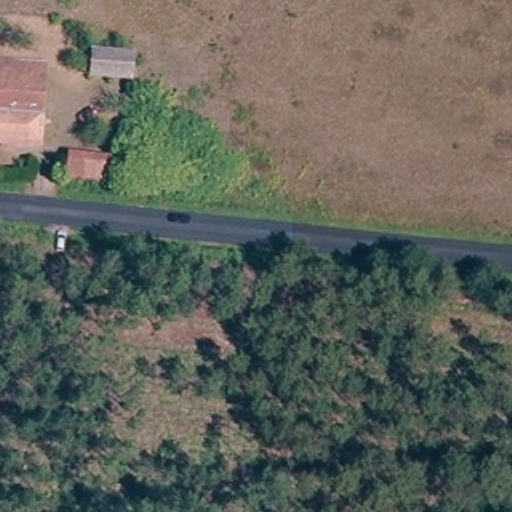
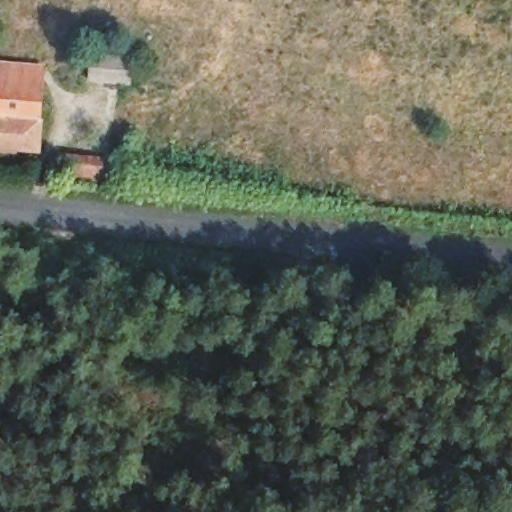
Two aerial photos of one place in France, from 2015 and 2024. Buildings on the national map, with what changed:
unchanged [(134,56),(132,91),(86,88),(91,52),(134,56)]
unchanged [(0,97),(0,68),(50,71),(51,100),(0,97)]
unchanged [(50,153),(0,151),(0,97),(51,100),(50,153)]
unchanged [(105,165),(105,185),(72,183),(74,162),(105,165)]

